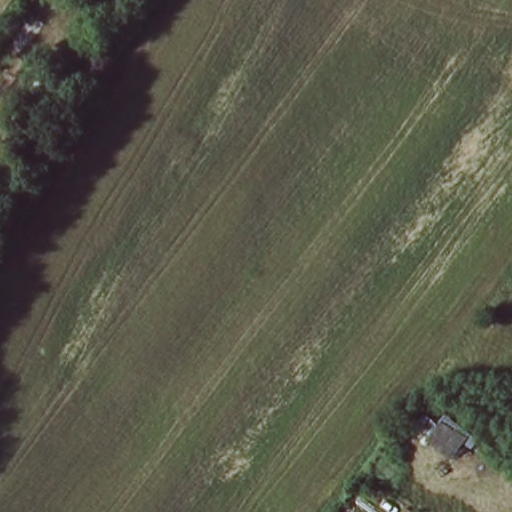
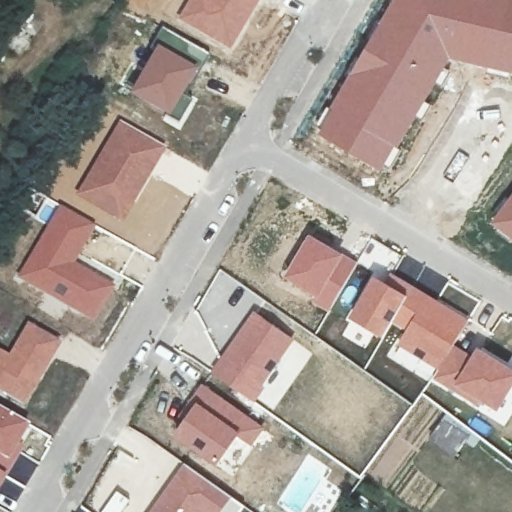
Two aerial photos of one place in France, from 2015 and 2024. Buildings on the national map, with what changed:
new [(187,0),(260,0),(230,51),(176,19),(187,0)]
new [(369,44),(393,0),(512,0),(512,74),(451,59),(384,172),(316,132),(369,44)]
new [(156,44),(198,67),(168,118),(127,93),(156,44)]
new [(118,119),(166,147),(121,225),(71,199),(118,119)]
new [(512,192),(512,240),(489,223),(512,192)]
new [(58,203),(96,225),(75,261),(116,285),(95,323),(15,276),(58,203)]
new [(310,233),(358,262),(329,311),(311,300),(315,295),(284,276),(310,233)]
new [(391,271),(438,297),(448,281),(457,286),(455,291),(452,289),(447,298),(472,316),(455,344),(436,370),(396,344),(404,330),(392,323),(407,294),(385,280),(391,271)]
new [(373,274),(385,280),(407,294),(392,323),(383,337),(348,317),(373,274)]
new [(254,309),(296,338),(255,402),(210,371),(254,309)]
new [(26,321),(61,343),(25,406),(0,392),(0,349),(8,353),(26,321)]
new [(436,370),(455,344),(472,354),(478,345),(512,366),(512,387),(497,412),(481,402),(478,406),(431,379),(436,370)]
new [(195,399),(192,397),(202,383),(265,426),(251,446),(238,437),(217,464),(173,434),(195,399)]
new [(6,477),(0,473),(0,408),(33,428),(6,477)]
new [(445,411),(476,432),(454,458),(427,437),(445,411)]
new [(245,505),(240,512),(148,512),(183,462),(245,505)]
new [(0,488),(0,473),(6,477),(0,488)]
new [(130,499),(121,512),(101,512),(115,489),(130,499)]

